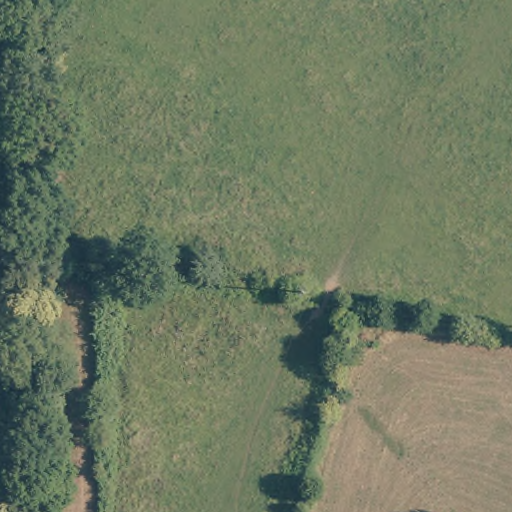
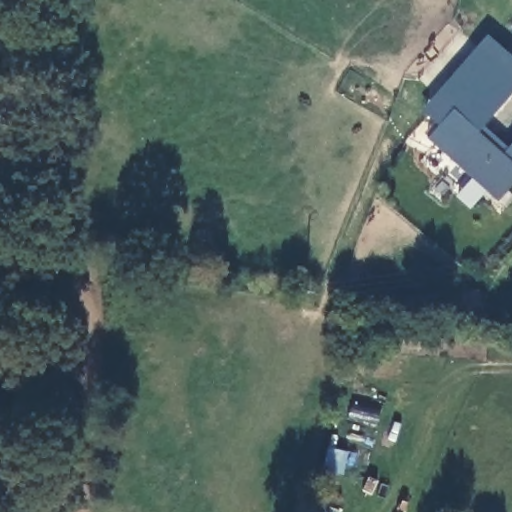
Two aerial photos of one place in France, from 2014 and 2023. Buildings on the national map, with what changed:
new [(451,111),(438,125),(421,110),(476,46),(512,78),(512,91),(474,131),(451,111)]
new [(427,137),(451,111),(512,164),(512,186),(497,201),(427,137)]

